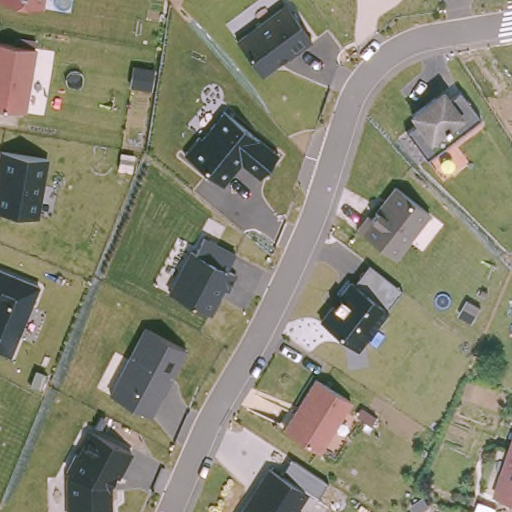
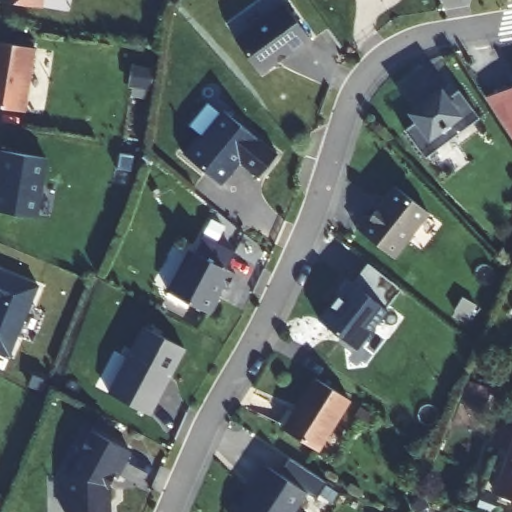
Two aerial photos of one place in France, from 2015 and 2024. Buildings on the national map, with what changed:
unchanged [(42,9),(0,3),(0,0),(44,0),(42,9)]
unchanged [(286,6),(313,43),(290,60),(288,57),(262,76),(237,43),(286,6)]
unchanged [(26,114),(0,110),(0,45),(37,50),(26,114)]
new [(487,96),(512,86),(512,134),(487,96)]
unchanged [(415,121),(409,112),(443,87),(449,96),(459,89),(480,117),(425,156),(406,129),(415,121)]
unchanged [(224,109),(278,155),(259,177),(240,163),(222,184),(184,153),(199,134),(200,136),(224,109)]
unchanged [(39,220),(0,214),(0,190),(2,188),(4,181),(0,181),(0,172),(3,154),(49,160),(39,220)]
unchanged [(373,214),(376,217),(402,186),(435,214),(399,257),(362,227),(373,214)]
unchanged [(193,252),(197,254),(205,239),(237,255),(229,271),(237,275),(229,291),(225,289),(220,297),(221,298),(212,315),(171,294),(193,252)]
unchanged [(352,283),(369,263),(400,289),(384,307),(388,312),(357,350),(319,319),(350,280),(352,283)]
unchanged [(12,358),(0,353),(0,272),(41,288),(12,358)]
unchanged [(147,329),(187,350),(172,380),(170,378),(165,387),(167,388),(152,417),(112,395),(147,329)]
unchanged [(318,380),(352,401),(320,452),(287,431),(318,380)]
unchanged [(72,473),(70,471),(79,454),(82,456),(95,431),(134,453),(120,479),(117,477),(110,488),(111,492),(112,492),(112,512),(71,512),(70,478),(72,473)]
unchanged [(497,492),(512,447),(512,497),(497,492)]
unchanged [(255,498),(262,488),(262,485),(272,469),(310,493),(298,512),(244,512),(252,499),(255,498)]

